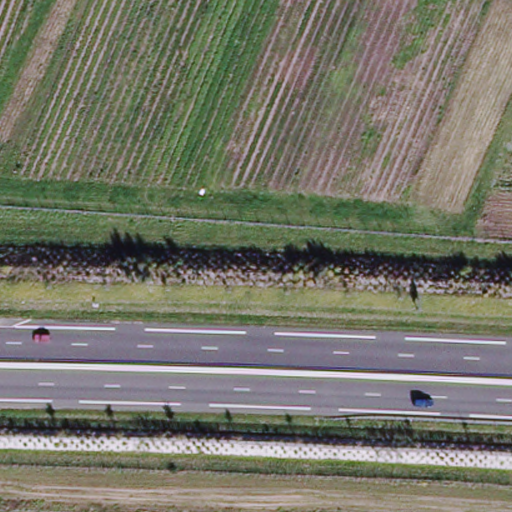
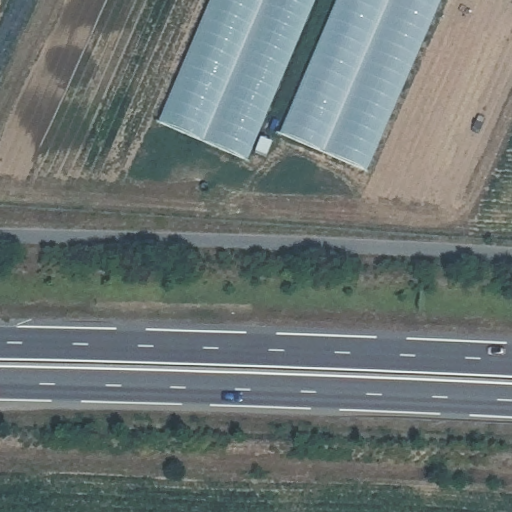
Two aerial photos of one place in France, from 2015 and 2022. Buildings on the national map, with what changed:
new [(311,0),(246,160),(159,121),(211,0),(311,0)]
new [(280,132),(337,0),(440,0),(367,169),(280,132)]

